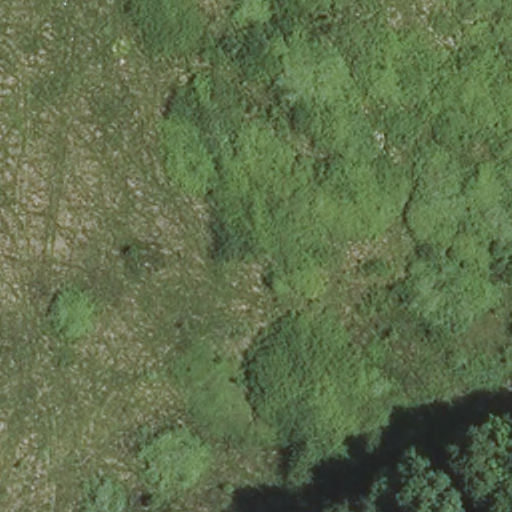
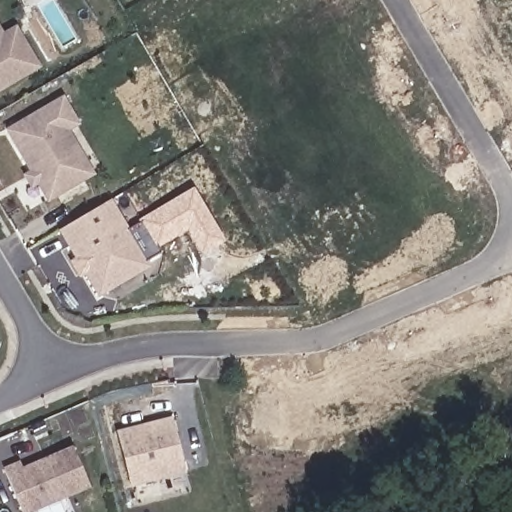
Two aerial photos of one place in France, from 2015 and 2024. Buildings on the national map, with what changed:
new [(41,67),(0,92),(0,25),(4,32),(17,26),(41,67)]
new [(80,125),(69,131),(95,175),(48,203),(37,186),(32,189),(23,175),(29,171),(4,130),(63,96),(80,125)]
new [(138,223),(137,221),(192,188),(225,242),(201,256),(186,232),(157,250),(159,253),(147,261),(129,230),(138,223)]
new [(99,297),(59,231),(111,200),(150,266),(99,297)]
new [(130,487),(115,430),(171,416),(186,472),(130,487)]
new [(22,512),(2,468),(20,461),(24,467),(72,447),(91,488),(33,512),(22,512)]

